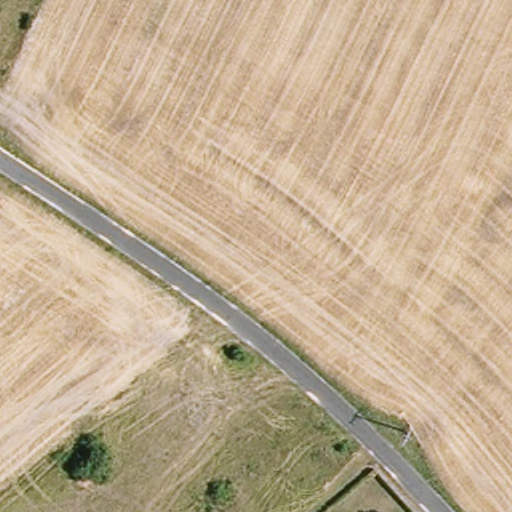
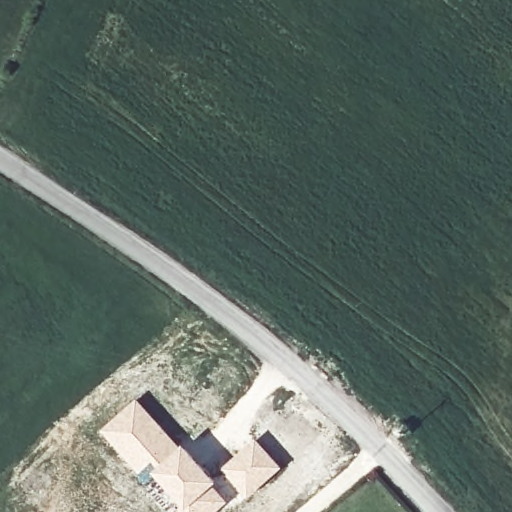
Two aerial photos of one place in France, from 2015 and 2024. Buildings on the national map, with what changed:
new [(137,397),(182,446),(152,473),(148,470),(141,477),(99,431),(137,397)]
new [(256,438),(283,467),(247,499),(221,468),(256,438)]
new [(182,446),(184,443),(220,482),(216,486),(229,501),(216,512),(187,512),(152,473),(182,446)]

